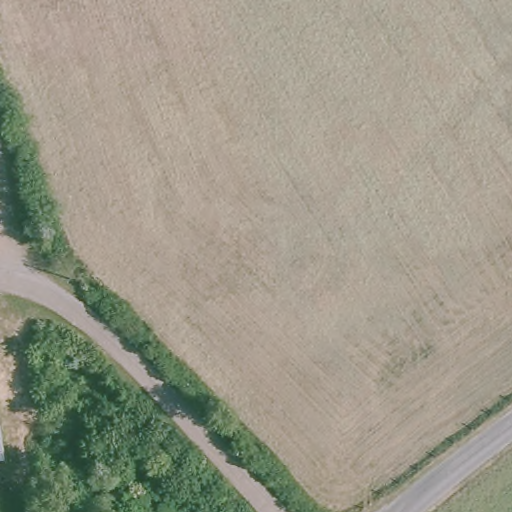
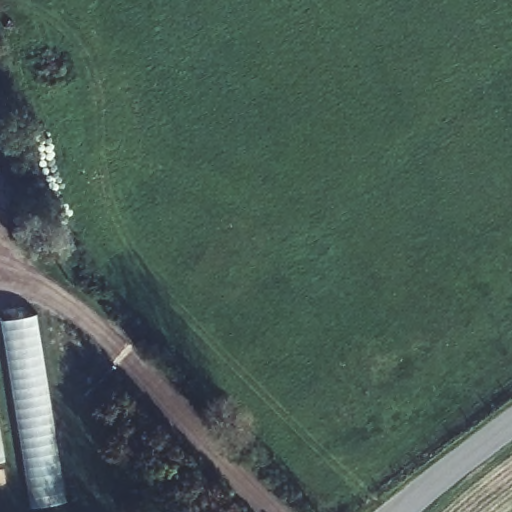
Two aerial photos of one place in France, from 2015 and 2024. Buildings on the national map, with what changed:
new [(29,505),(0,330),(0,318),(38,313),(72,499),(29,505)]
unchanged [(0,460),(0,444),(2,459),(0,460)]

